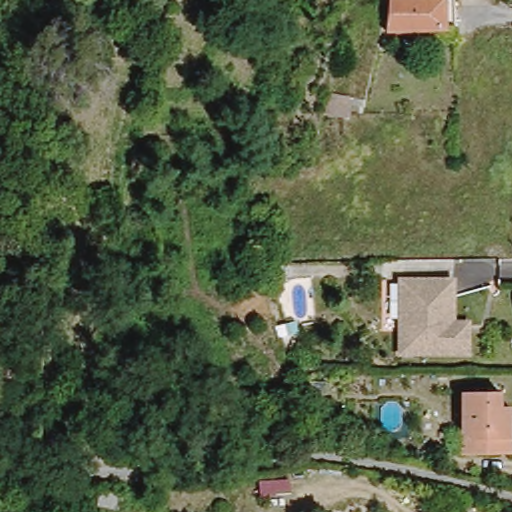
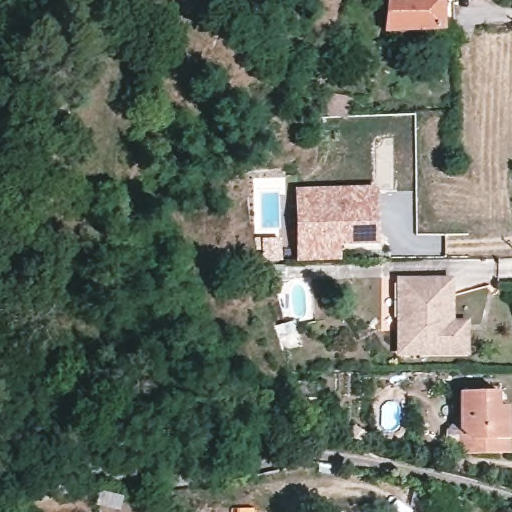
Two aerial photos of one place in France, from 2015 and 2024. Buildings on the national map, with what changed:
unchanged [(386,0),(455,0),(456,21),(445,20),(386,23),(385,11),(386,0)]
unchanged [(356,118),(330,112),(334,94),(361,99),(356,118)]
new [(293,190),(378,189),(379,239),(294,240),(293,190)]
unchanged [(291,265),(291,281),(269,281),(269,266),(291,265)]
unchanged [(463,338),(463,357),(395,357),(396,288),(448,288),(447,329),(463,329),(463,338)]
unchanged [(491,456),(467,456),(456,456),(455,433),(455,396),(493,395),(493,410),(503,410),(503,441),(504,455),(491,456)]
unchanged [(121,508),(121,512),(95,508),(97,495),(97,493),(124,497),(121,508)]

